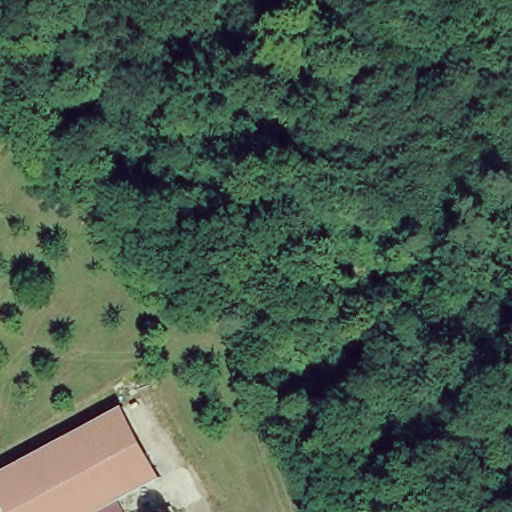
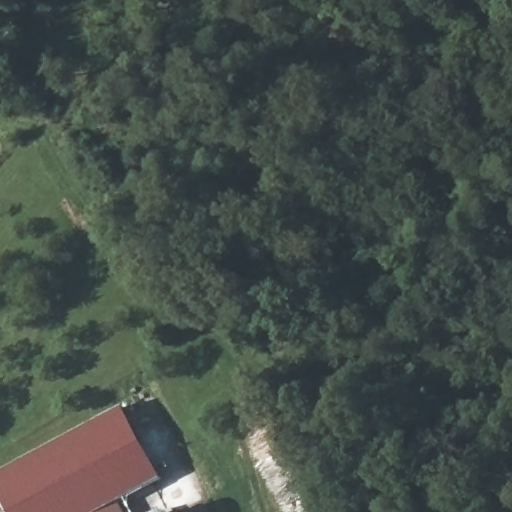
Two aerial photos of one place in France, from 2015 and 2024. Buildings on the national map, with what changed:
unchanged [(160,479),(117,502),(98,512),(6,512),(5,509),(0,500),(0,473),(24,460),(121,408),(160,479)]
unchanged [(122,512),(98,512),(117,502),(122,512)]
unchanged [(172,512),(164,512),(170,508),(172,512)]

